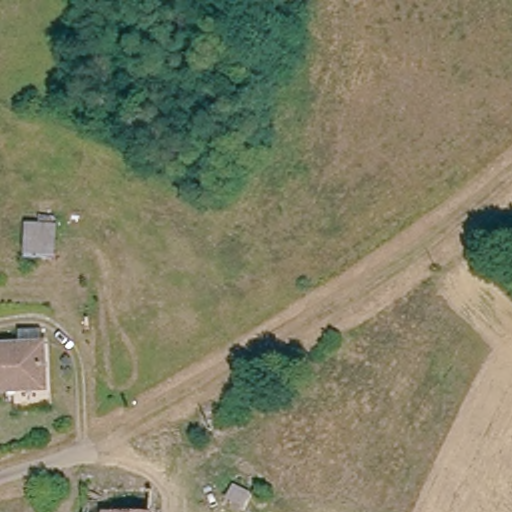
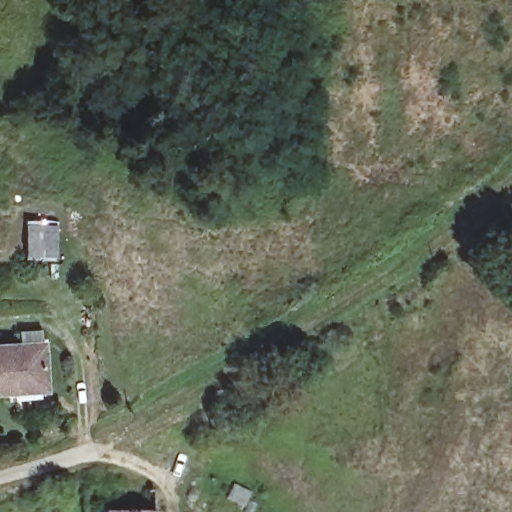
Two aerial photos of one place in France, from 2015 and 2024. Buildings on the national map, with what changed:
unchanged [(30,390),(0,394),(0,352),(25,349),(30,390)]
unchanged [(72,509),(146,512),(72,512),(72,509)]

